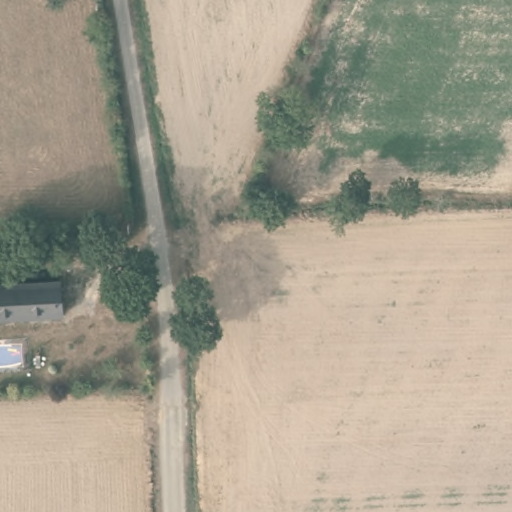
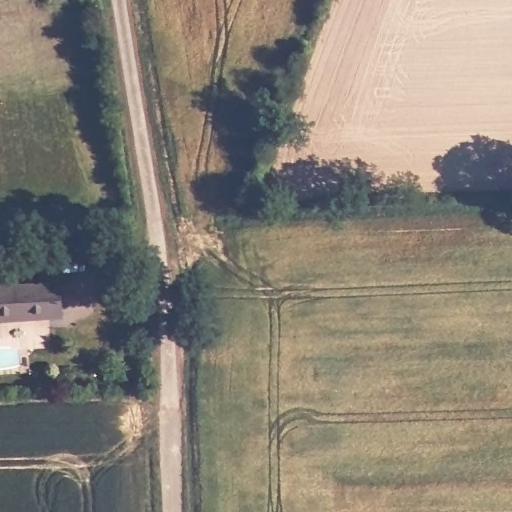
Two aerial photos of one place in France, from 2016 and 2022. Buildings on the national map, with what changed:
unchanged [(61,318),(0,320),(0,286),(60,284),(61,318)]

